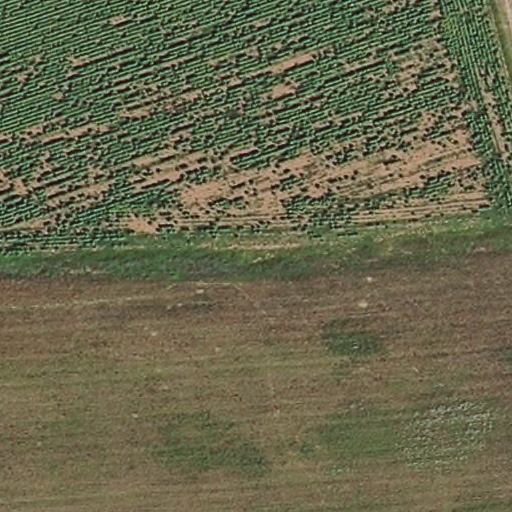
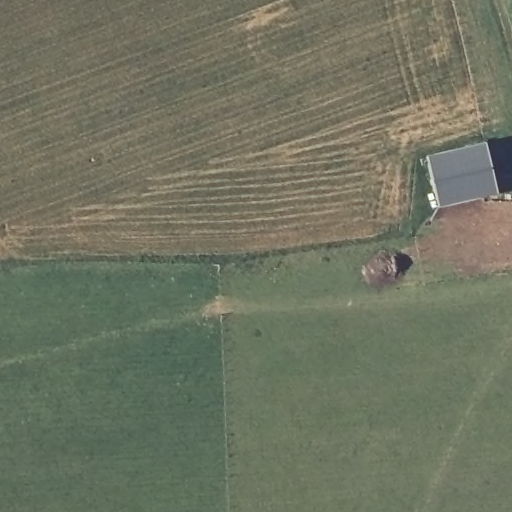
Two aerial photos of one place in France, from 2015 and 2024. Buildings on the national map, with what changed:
new [(486,140),(498,194),(437,207),(425,153),(486,140)]

